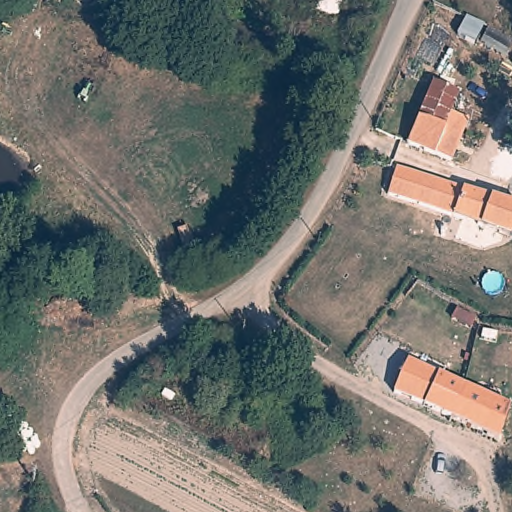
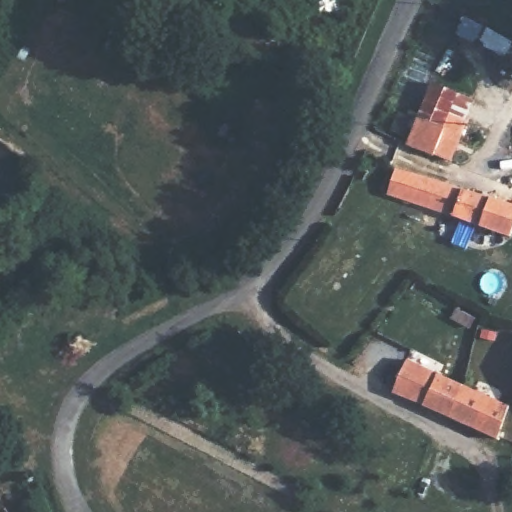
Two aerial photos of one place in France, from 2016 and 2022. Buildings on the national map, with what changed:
unchanged [(303,3),(295,0),(304,0),(303,3)]
unchanged [(486,34),(495,8),(512,13),(512,23),(507,40),(486,34)]
unchanged [(411,146),(438,86),(461,96),(455,113),(471,121),(455,160),(437,155),(411,146)]
unchanged [(492,200),(512,207),(512,235),(485,226),(479,244),(465,239),(451,235),(456,217),(390,197),(398,171),(492,200)]
unchanged [(451,420),(424,408),(396,396),(410,364),(439,377),(463,388),(464,388),(511,410),(510,420),(502,442),(451,420)]

